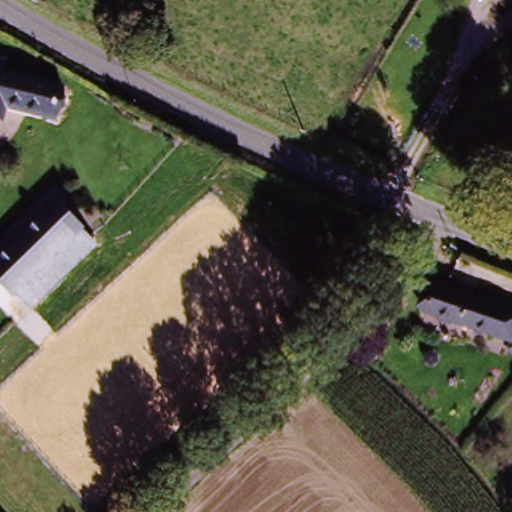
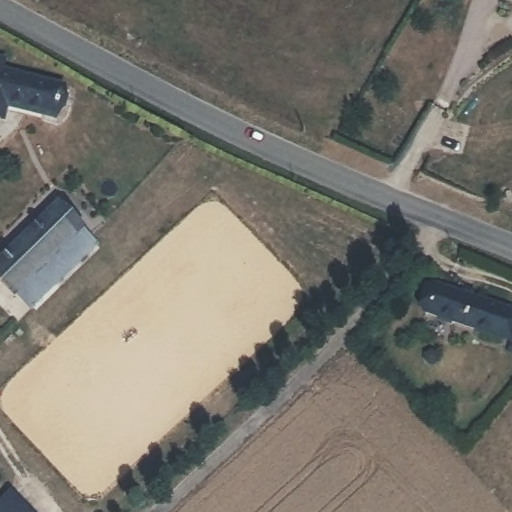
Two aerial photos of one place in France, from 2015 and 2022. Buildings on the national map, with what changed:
unchanged [(57,119),(45,116),(0,105),(0,62),(8,64),(4,77),(51,88),(64,91),(57,119)]
unchanged [(60,205),(84,228),(82,231),(96,245),(30,309),(15,293),(13,296),(0,282),(0,266),(60,205)]
unchanged [(302,241),(273,241),(273,213),(302,214),(302,241)]
unchanged [(435,285),(512,309),(512,339),(427,312),(435,285)]

